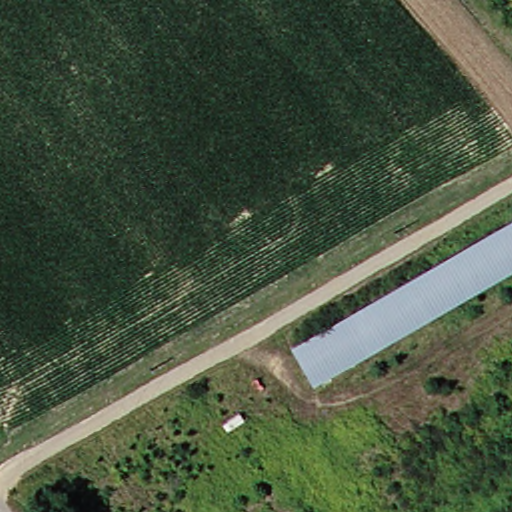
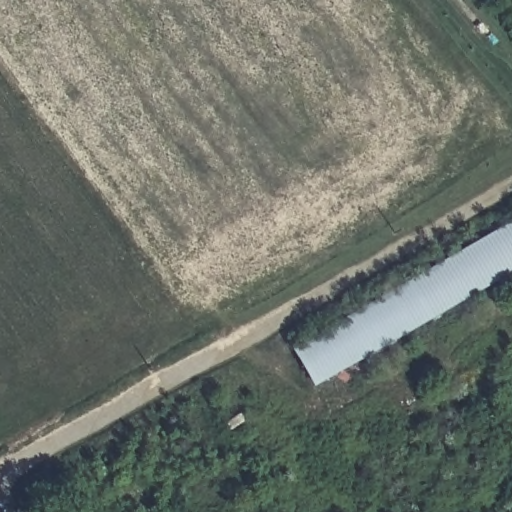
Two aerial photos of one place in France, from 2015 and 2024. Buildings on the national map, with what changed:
unchanged [(283,348),(506,220),(512,231),(512,266),(304,386),(283,348)]

